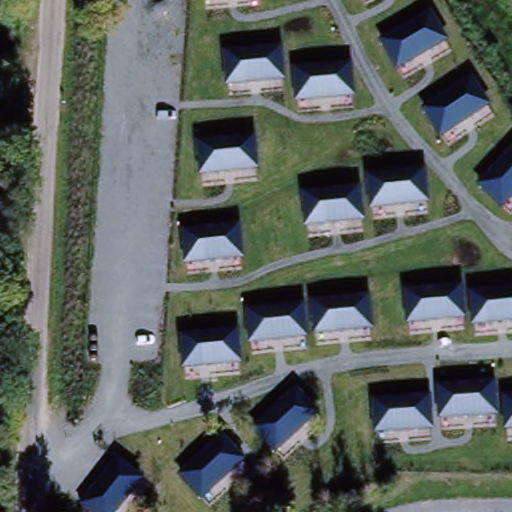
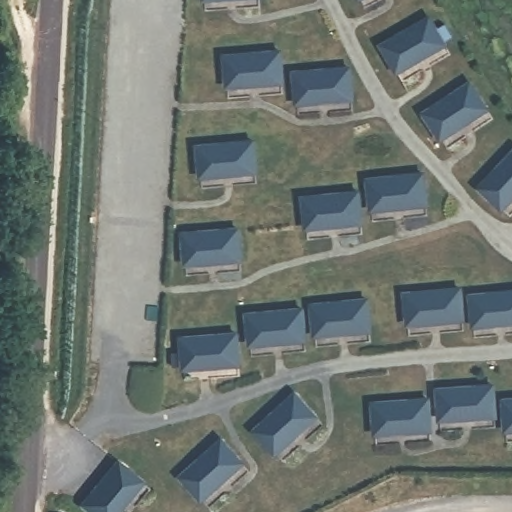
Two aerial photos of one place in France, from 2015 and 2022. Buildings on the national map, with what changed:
unchanged [(429,14),(447,44),(396,72),(379,42),(429,14)]
unchanged [(282,48),(284,82),(228,84),(226,53),(282,48)]
unchanged [(351,66),(354,99),(298,103),(296,71),(351,66)]
unchanged [(471,83),(489,109),(441,140),(424,113),(471,83)]
unchanged [(256,140),(259,172),(199,177),(196,146),(256,140)]
unchanged [(512,148),(512,194),(499,207),(478,183),(512,148)]
unchanged [(424,171),(427,203),(371,209),(369,176),(424,171)]
unchanged [(359,186),(363,220),(305,226),(304,191),(359,186)]
unchanged [(246,259),(181,263),(182,232),(241,227),(246,259)]
unchanged [(461,285),(463,318),(409,323),(406,290),(461,285)]
unchanged [(512,289),(512,321),(472,324),(471,294),(512,289)]
unchanged [(316,335),(314,304),(369,298),(373,328),(316,335)]
unchanged [(301,306),(303,337),(250,343),(247,312),(301,306)]
unchanged [(241,331),(243,367),(183,369),(183,336),(241,331)]
unchanged [(437,386),(494,383),(495,416),(440,420),(437,386)]
unchanged [(295,395),(319,416),(274,454),(253,429),(295,395)]
unchanged [(429,395),(431,430),(374,434),(371,400),(429,395)]
unchanged [(505,400),(512,400),(512,430),(506,430),(505,400)]
unchanged [(219,442),(241,463),(200,501),(179,476),(219,442)]
unchanged [(141,485),(119,512),(90,512),(83,505),(118,465),(141,485)]

